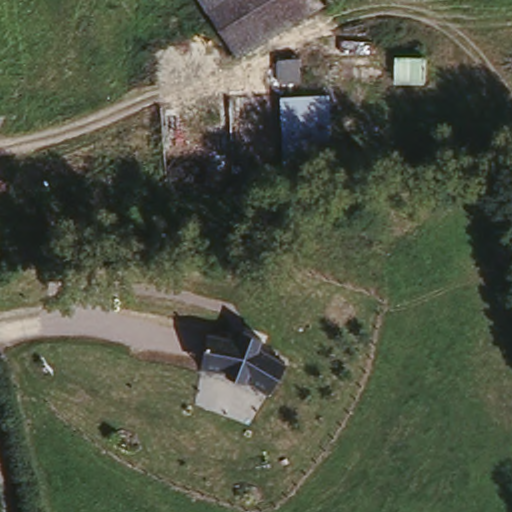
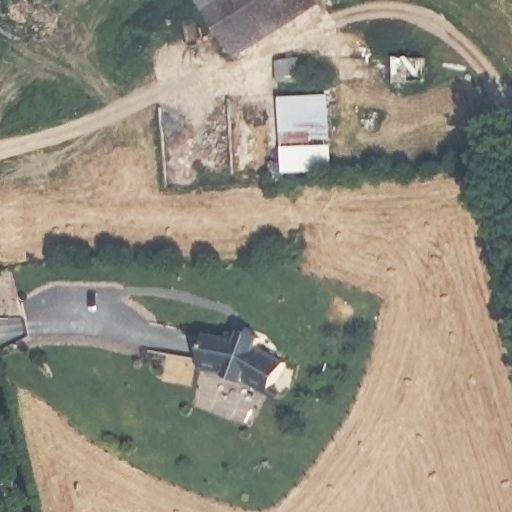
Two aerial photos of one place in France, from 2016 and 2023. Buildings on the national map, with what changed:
unchanged [(187,0),(309,0),(247,60),(187,0)]
unchanged [(278,92),(274,62),(347,57),(420,51),(423,81),(318,90),(278,92)]
unchanged [(282,102),(324,97),(330,164),(288,167),(282,102)]
unchanged [(231,336),(242,330),(265,337),(262,351),(292,367),(269,398),(235,376),(200,371),(209,335),(231,336)]

